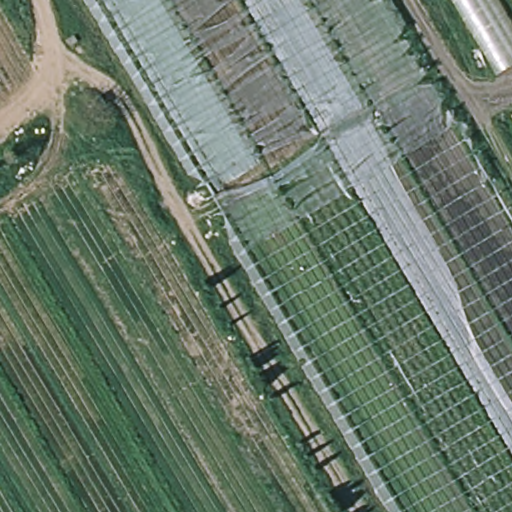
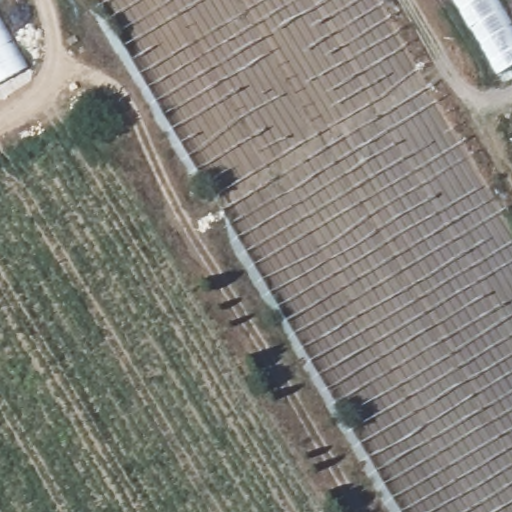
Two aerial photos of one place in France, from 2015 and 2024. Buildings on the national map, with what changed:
unchanged [(512,219),(512,512),(397,512),(94,0),(382,0),(512,219)]
unchanged [(497,85),(447,0),(512,0),(512,76),(497,85)]
new [(31,65),(0,82),(0,10),(31,65)]
unchanged [(99,112),(93,102),(102,97),(108,106),(99,112)]

